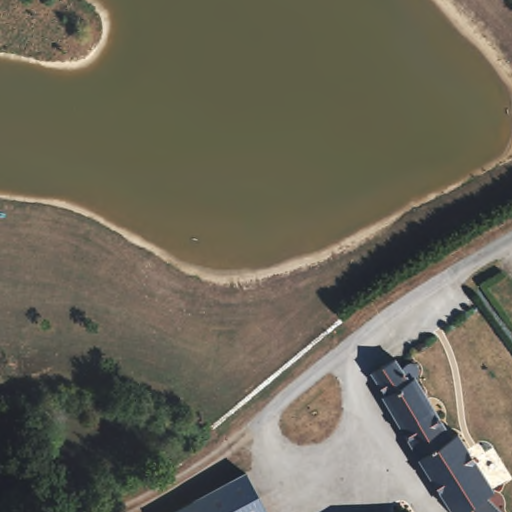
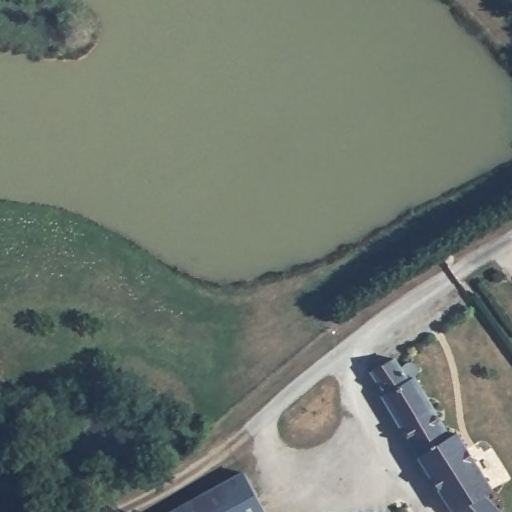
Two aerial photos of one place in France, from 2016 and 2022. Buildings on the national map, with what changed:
unchanged [(413,331),(422,345),(395,363),(399,370),(411,365),(418,376),(421,375),(432,388),(422,395),(449,438),(455,435),(491,492),(484,497),(498,512),(451,512),(380,398),(384,395),(371,376),(381,351),(413,331)]
unchanged [(263,512),(168,512),(244,472),(263,512)]

